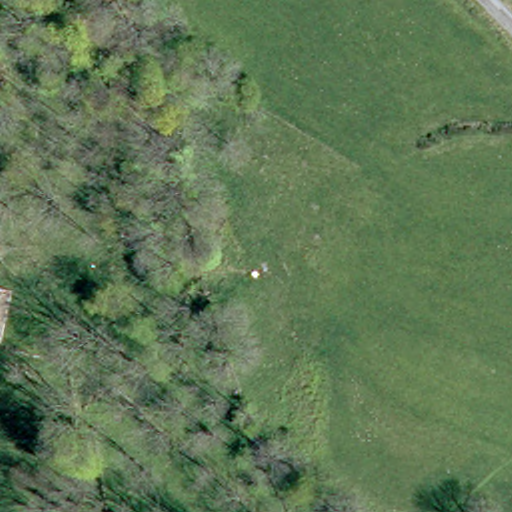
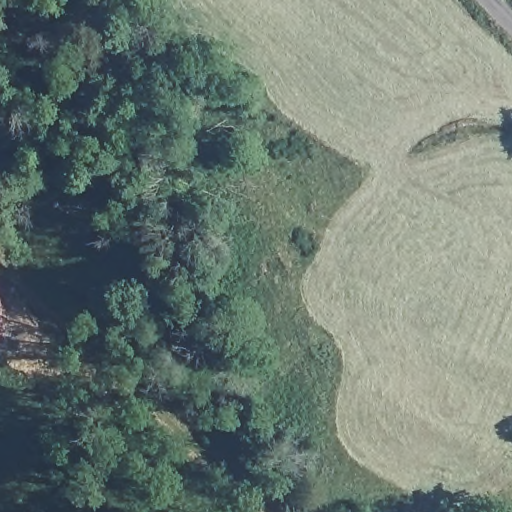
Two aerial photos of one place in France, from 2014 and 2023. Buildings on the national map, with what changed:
unchanged [(0,311),(0,284),(7,286),(0,311)]

